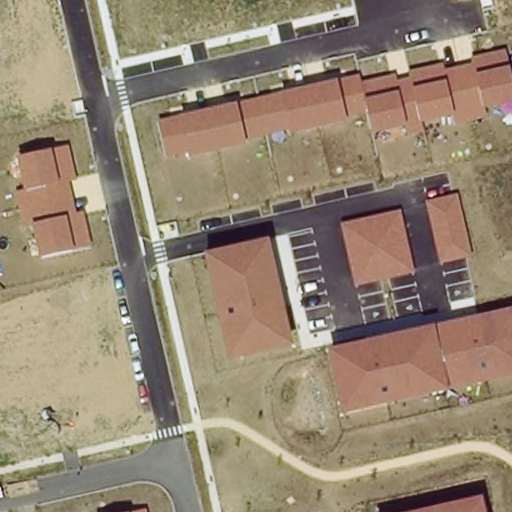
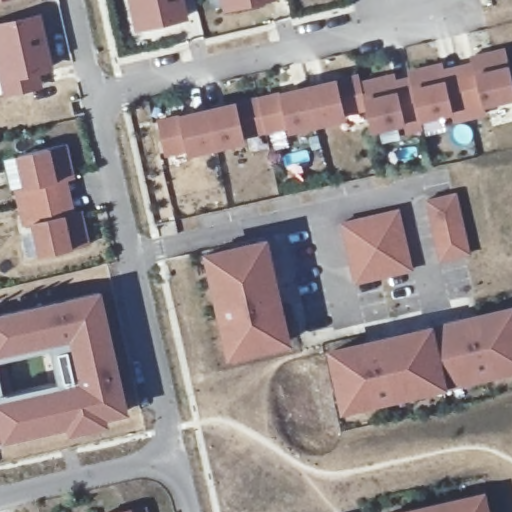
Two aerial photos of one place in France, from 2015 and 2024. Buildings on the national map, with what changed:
new [(136,0),(144,0),(149,26),(142,28),(136,0)]
new [(188,18),(149,27),(144,0),(184,0),(188,18)]
new [(229,0),(236,0),(237,6),(230,8),(229,0)]
new [(238,7),(236,0),(268,0),(238,7)]
new [(41,17),(53,69),(14,78),(6,44),(0,45),(0,26),(41,17)]
new [(14,78),(41,72),(44,87),(11,94),(0,45),(6,44),(14,78)]
unchanged [(236,103),(282,93),(336,81),(358,75),(360,81),(395,73),(396,80),(409,77),(408,70),(443,63),(445,69),(472,64),(470,57),(504,51),(509,66),(512,77),(512,102),(483,108),(484,118),(452,125),(449,115),(422,123),(423,132),(404,136),(403,126),(373,133),(367,112),(344,116),(344,121),(290,134),(288,130),(246,138),(246,144),(191,157),(189,153),(168,157),(159,118),(181,115),(236,103)]
unchanged [(77,179),(70,181),(78,212),(84,210),(92,245),(75,249),(40,257),(35,226),(25,228),(17,190),(27,189),(20,158),(51,150),(68,146),(77,179)]
unchanged [(460,194),(474,253),(445,260),(432,200),(460,194)]
unchanged [(399,209),(414,273),(353,286),(340,223),(399,209)]
unchanged [(293,346),(228,360),(205,252),(268,237),(293,346)]
new [(77,432),(75,423),(11,437),(3,403),(112,379),(110,372),(88,377),(71,301),(105,293),(122,369),(119,369),(121,377),(123,376),(132,410),(109,415),(112,425),(77,432)]
new [(71,337),(63,303),(71,301),(88,377),(110,372),(112,379),(3,403),(11,437),(4,439),(0,421),(0,361),(0,353),(71,337)]
new [(63,303),(71,337),(0,353),(0,317),(63,303)]
unchanged [(512,308),(512,375),(447,389),(342,413),(327,348),(433,326),(512,308)]
new [(4,439),(0,440),(0,421),(4,439)]
unchanged [(414,512),(480,497),(484,512),(414,512)]
unchanged [(146,512),(134,512),(145,510),(146,512)]

